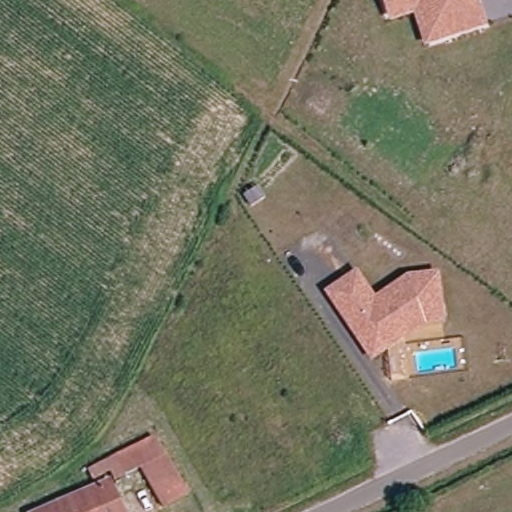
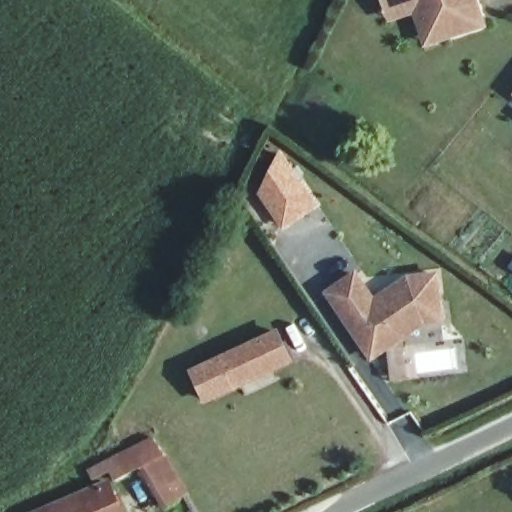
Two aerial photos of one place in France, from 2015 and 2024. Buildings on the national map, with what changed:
unchanged [(387,10),(384,0),(422,0),(387,10)]
unchanged [(425,43),(415,10),(390,18),(387,10),(422,0),(432,0),(444,37),(425,43)]
unchanged [(482,25),(444,37),(432,0),(474,0),(482,25)]
new [(321,206),(283,230),(258,191),(282,147),(321,206)]
unchanged [(325,291),(359,269),(375,296),(405,276),(440,272),(444,323),(427,323),(372,360),(325,291)]
new [(296,362),(205,404),(189,368),(279,326),(296,362)]
unchanged [(145,438),(160,430),(191,498),(166,511),(145,463),(116,478),(111,480),(106,469),(102,460),(145,438)]
unchanged [(119,512),(48,512),(107,483),(119,512)]

